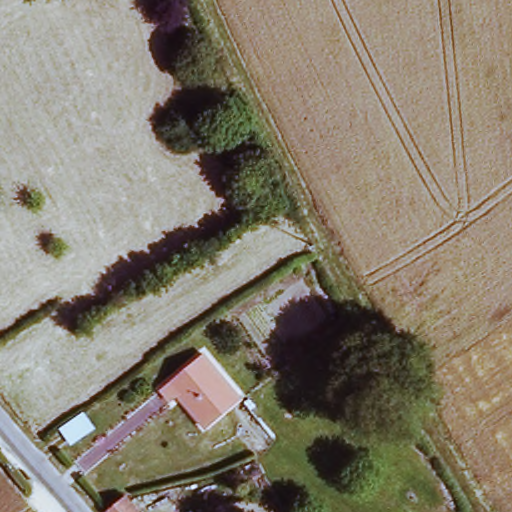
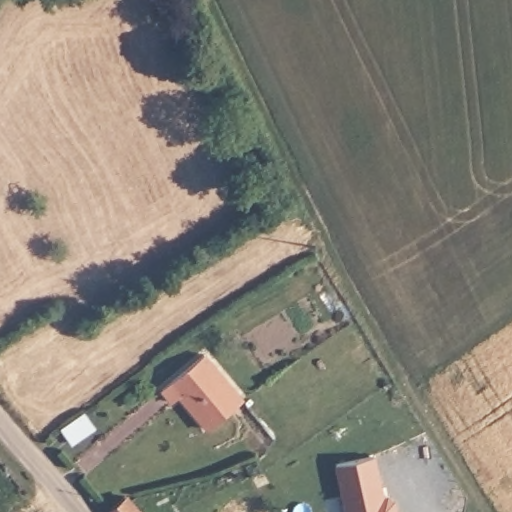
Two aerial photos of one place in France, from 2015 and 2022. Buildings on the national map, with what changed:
unchanged [(190,410),(181,399),(175,402),(165,389),(206,356),(240,398),(226,411),(200,433),(195,428),(190,421),(194,414),(190,410)]
new [(375,454),(383,495),(388,494),(394,498),(397,512),(347,512),(336,463),(375,454)]
unchanged [(125,497),(138,512),(108,512),(125,497)]

